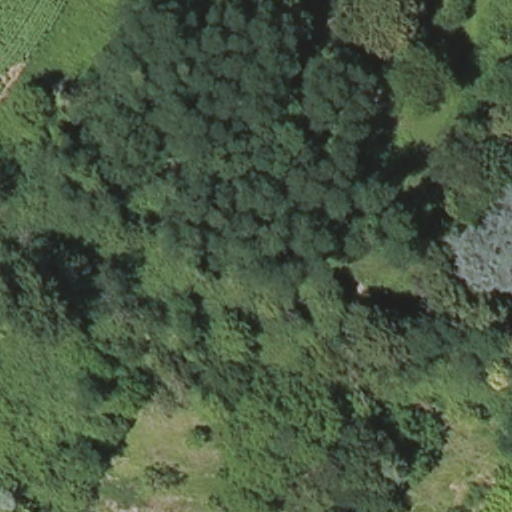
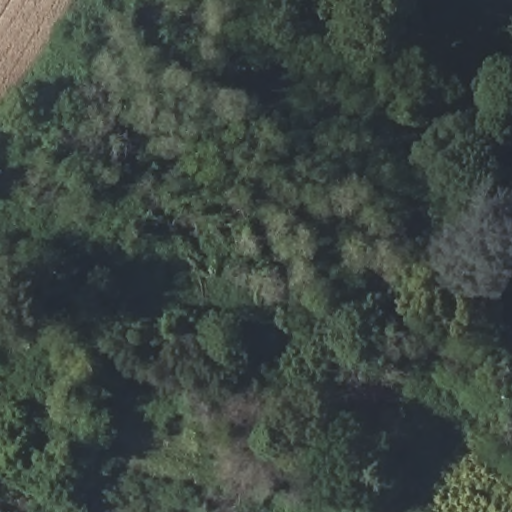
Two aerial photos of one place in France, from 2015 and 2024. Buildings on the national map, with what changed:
unchanged [(512,79),(505,78),(508,53),(512,53),(512,79)]

